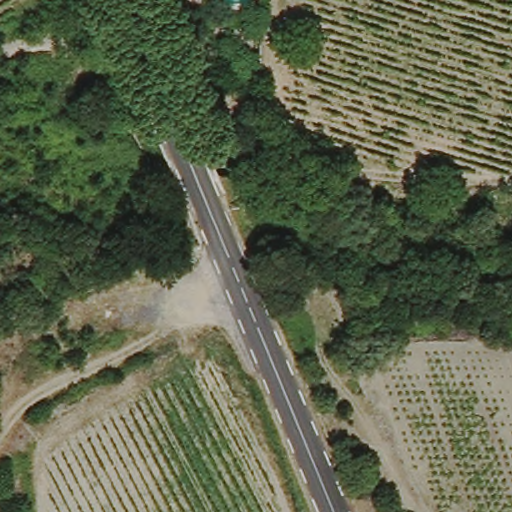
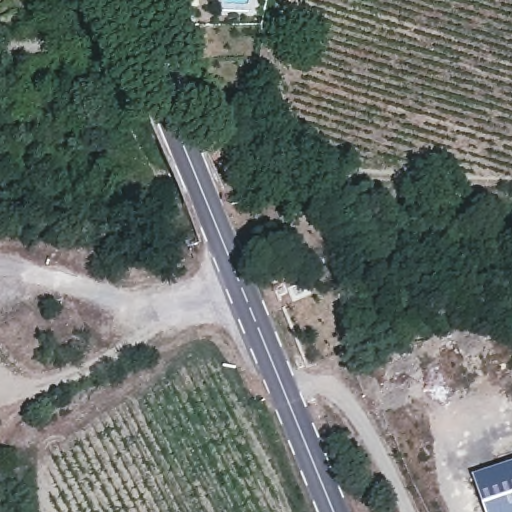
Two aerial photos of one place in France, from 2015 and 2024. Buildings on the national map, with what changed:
new [(512,512),(484,512),(470,474),(512,460),(512,512)]

